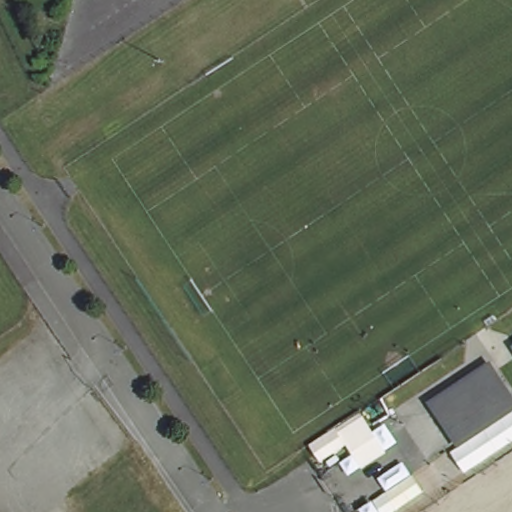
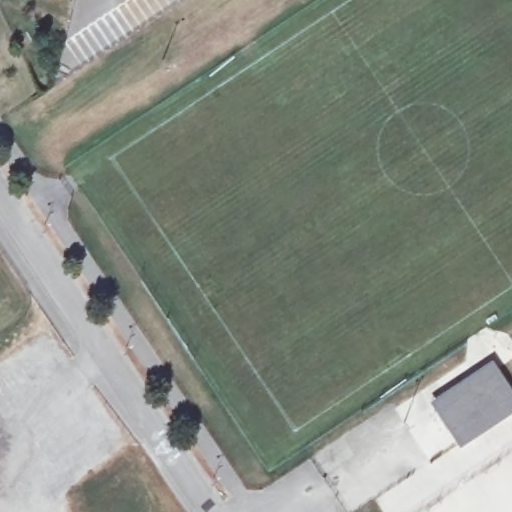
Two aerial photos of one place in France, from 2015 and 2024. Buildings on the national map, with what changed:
unchanged [(512,402),(455,442),(432,412),(492,372),(512,402)]

